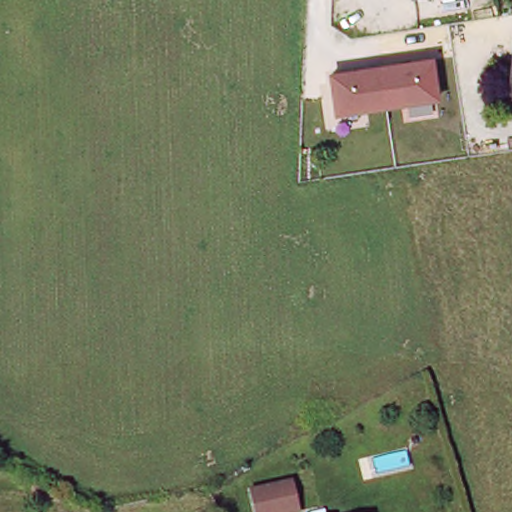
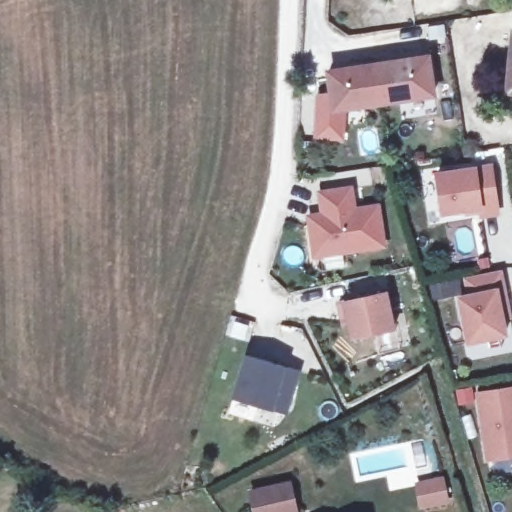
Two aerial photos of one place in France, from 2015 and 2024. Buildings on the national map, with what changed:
unchanged [(497,89),(503,31),(512,32),(512,90),(497,89)]
unchanged [(377,61),(378,65),(425,58),(431,92),(386,100),(387,106),(334,115),(329,70),(377,61)]
new [(495,167),(502,213),(486,216),(485,207),(447,213),(442,175),(495,167)]
new [(325,216),(330,215),(326,194),(356,189),(360,210),(383,206),(390,245),(322,256),(317,227),(325,216)]
new [(475,296),(472,280),(505,273),(512,307),(512,309),(506,310),(511,334),(475,342),(466,298),(475,296)]
new [(342,312),(339,295),(387,284),(395,320),(354,330),(350,317),(344,318),(342,312)]
new [(247,350),(300,365),(288,407),(238,395),(247,350)]
new [(512,382),(512,451),(489,455),(478,388),(512,382)]
unchanged [(286,512),(248,512),(242,491),(284,481),(292,510),(286,512)]

